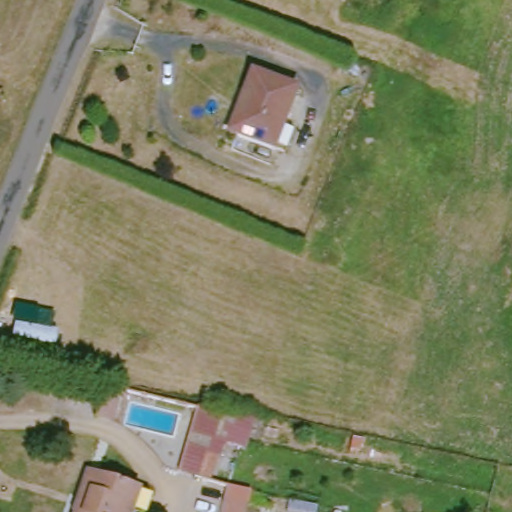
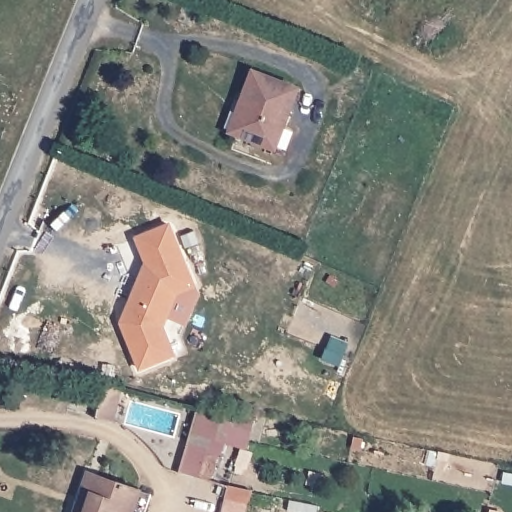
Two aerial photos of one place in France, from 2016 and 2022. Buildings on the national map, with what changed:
unchanged [(296,90),(272,149),(234,132),(242,111),(238,109),(253,73),(296,90)]
new [(120,322),(144,262),(134,237),(172,222),(195,286),(178,293),(164,327),(176,355),(140,370),(120,322)]
unchanged [(115,385),(109,420),(97,417),(103,382),(115,385)]
unchanged [(256,422),(247,449),(226,443),(214,483),(178,473),(195,408),(256,422)]
unchanged [(138,512),(72,512),(68,510),(82,471),(95,475),(145,495),(138,512)]
unchanged [(255,492),(249,512),(220,512),(227,486),(255,492)]

